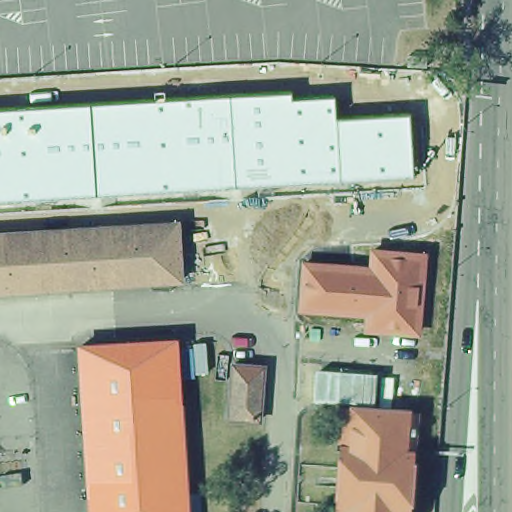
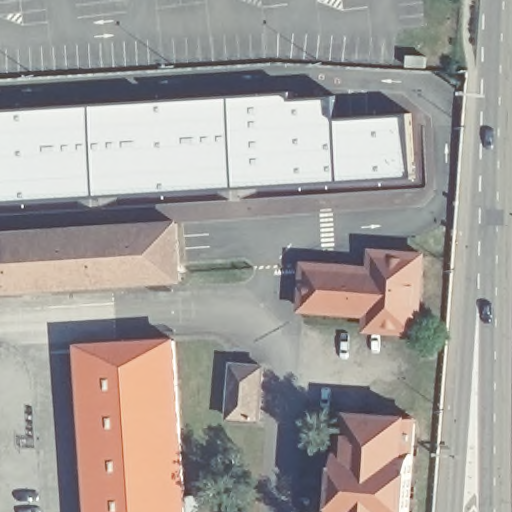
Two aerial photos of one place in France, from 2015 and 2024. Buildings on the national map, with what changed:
unchanged [(413,176),(340,181),(237,187),(97,195),(0,202),(0,110),(91,104),(230,96),(292,93),(292,100),(335,97),(338,119),(409,115),(413,176)]
unchanged [(178,286),(0,297),(0,238),(175,227),(178,286)]
unchanged [(358,332),(360,315),(293,309),(297,263),(364,268),(366,250),(417,253),(412,319),(410,337),(358,332)]
unchanged [(184,512),(86,512),(76,346),(174,340),(184,512)]
unchanged [(257,362),(253,417),(222,414),(226,360),(257,362)]
unchanged [(406,512),(333,512),(340,418),(413,423),(406,512)]

